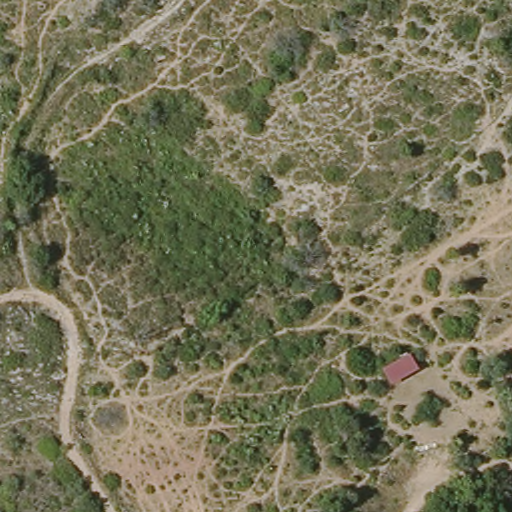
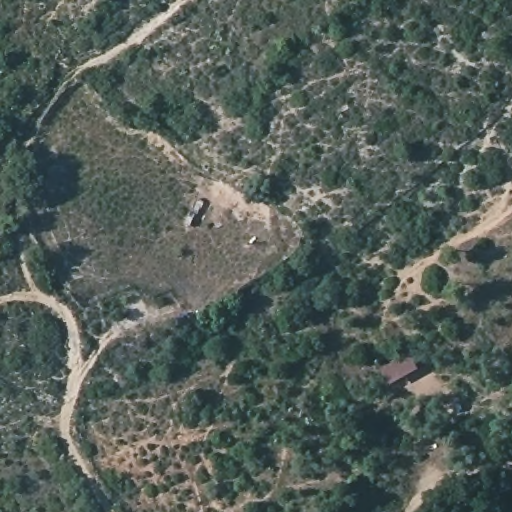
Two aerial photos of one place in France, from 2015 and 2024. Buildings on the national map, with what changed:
unchanged [(382,370),(411,353),(419,370),(392,385),(382,370)]

